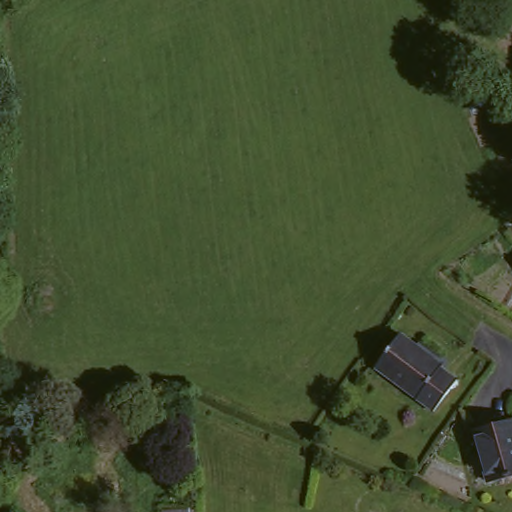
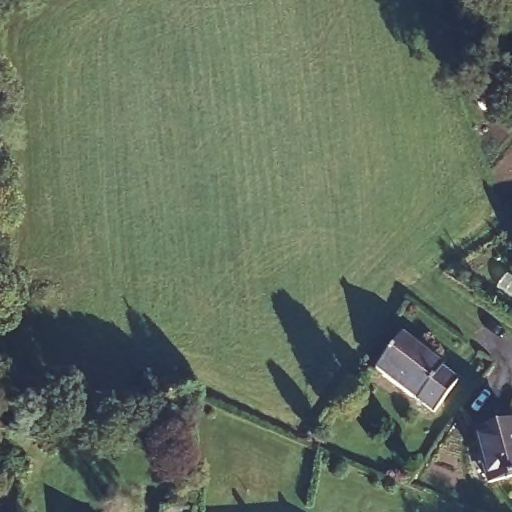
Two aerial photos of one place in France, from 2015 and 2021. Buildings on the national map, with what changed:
unchanged [(400,335),(440,365),(441,368),(456,380),(433,409),(410,392),(375,367),(400,335)]
unchanged [(474,430),(511,419),(512,421),(512,476),(489,482),(474,430)]

